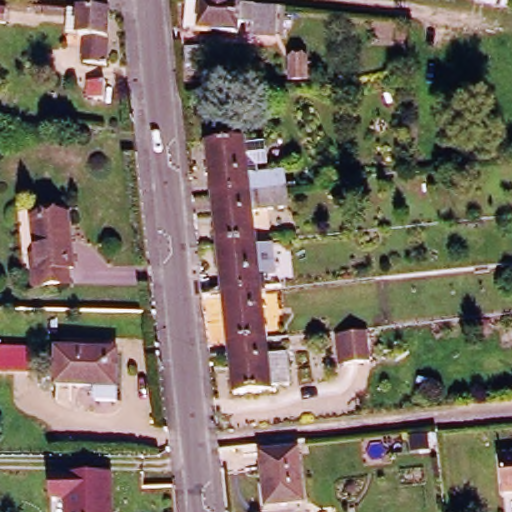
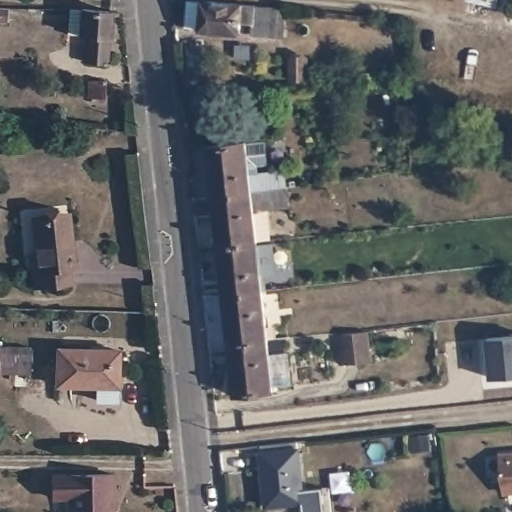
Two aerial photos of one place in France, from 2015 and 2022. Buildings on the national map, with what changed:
unchanged [(497,7),(466,0),(499,0),(497,7)]
unchanged [(0,17),(0,1),(4,1),(2,17),(0,17)]
unchanged [(253,36),(254,25),(242,24),(241,35),(203,30),(206,2),(285,9),(282,39),(253,36)]
unchanged [(74,34),(63,33),(65,6),(77,7),(107,10),(103,65),(77,63),(79,35),(74,34)]
unchanged [(307,81),(288,82),(288,60),(306,59),(307,81)]
unchanged [(87,81),(102,82),(100,97),(85,96),(87,81)]
unchanged [(205,140),(243,137),(247,171),(275,169),(276,185),(210,192),(205,140)]
unchanged [(276,185),(278,201),(250,204),(254,237),(216,241),(210,192),(276,185)]
unchanged [(32,268),(37,268),(33,219),(70,215),(75,265),(68,266),(70,283),(34,286),(32,268)]
unchanged [(254,237),(270,235),(276,283),(260,285),(221,290),(216,241),(254,237)]
unchanged [(260,285),(265,335),(227,340),(221,290),(260,285)]
unchanged [(340,362),(338,333),(364,330),(367,359),(340,362)]
unchanged [(271,387),(232,390),(227,340),(265,335),(271,387)]
new [(512,376),(489,378),(485,338),(512,335),(512,376)]
unchanged [(58,381),(58,345),(120,346),(119,383),(118,397),(98,397),(98,382),(58,381)]
unchanged [(33,349),(30,377),(0,378),(0,348),(33,349)]
unchanged [(425,441),(426,451),(417,452),(415,442),(425,441)]
unchanged [(306,502),(270,506),(263,453),(300,450),(306,502)]
unchanged [(512,489),(507,489),(503,450),(512,450),(512,489)]
unchanged [(48,500),(47,474),(110,473),(111,512),(63,512),(63,500),(48,500)]

